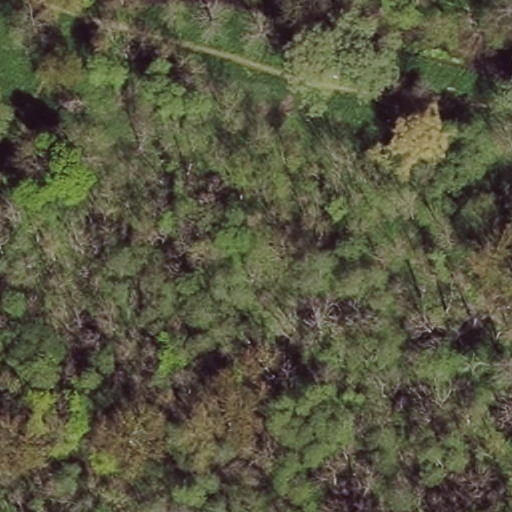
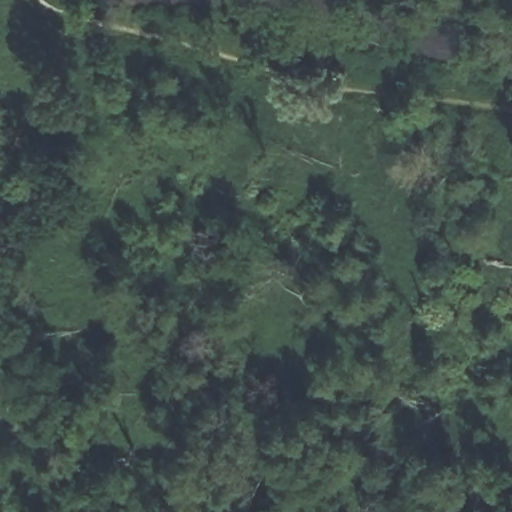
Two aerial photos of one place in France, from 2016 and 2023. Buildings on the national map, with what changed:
[]

